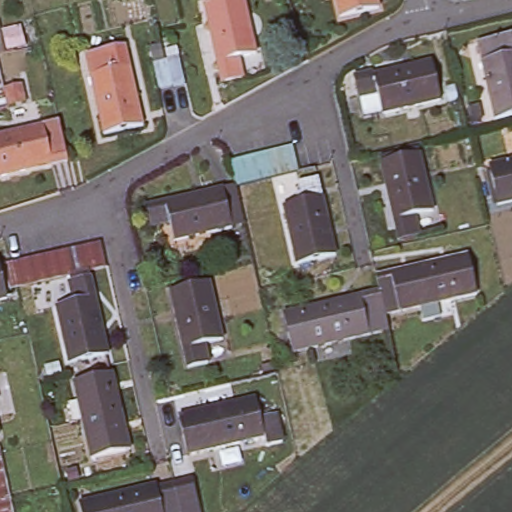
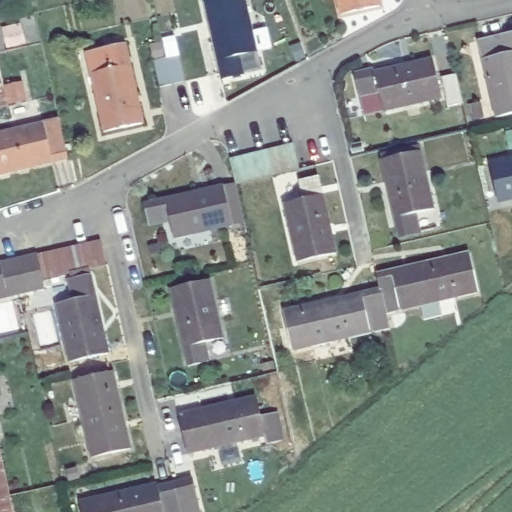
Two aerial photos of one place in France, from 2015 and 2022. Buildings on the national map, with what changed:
unchanged [(222,76),(206,0),(246,0),(257,48),(238,52),(242,71),(222,76)]
unchanged [(346,0),(371,0),(347,5),(346,0)]
unchanged [(484,56),(488,56),(483,37),(500,33),(512,31),(512,111),(497,114),(484,56)]
unchanged [(126,42),(142,119),(104,128),(92,71),(111,67),(107,47),(126,42)]
unchanged [(153,58),(166,55),(178,53),(184,78),(172,81),(159,84),(153,58)]
unchanged [(362,93),(357,73),(434,55),(442,93),(386,106),(367,111),(362,93)]
unchanged [(4,90),(6,102),(0,104),(0,75),(1,77),(4,90)]
unchanged [(42,121),(59,117),(67,156),(52,159),(0,171),(0,130),(42,120),(42,121)]
unchanged [(255,154),(267,151),(280,148),(292,146),(298,171),(286,174),(272,177),(261,179),(247,183),(235,185),(230,160),(242,157),(255,154)]
unchanged [(421,148),(435,206),(416,210),(420,228),(400,233),(382,157),(421,148)]
unchanged [(495,180),(491,160),(512,156),(512,177),(495,180)]
unchanged [(320,174),(336,252),(297,260),(285,203),(304,198),(300,178),(320,174)]
unchanged [(227,182),(237,220),(179,234),(174,214),(156,218),(152,201),(227,182)]
unchanged [(6,259),(15,257),(27,254),(40,251),(53,248),(66,245),(77,242),(91,239),(103,236),(109,261),(97,264),(83,267),(71,269),(59,272),(45,275),(32,278),(20,281),(11,283),(12,293),(0,296),(0,256),(3,255),(6,259)]
unchanged [(285,306),(362,290),(381,286),(377,271),(392,268),(470,250),(479,288),(422,301),(401,306),(386,309),(390,324),(371,328),(313,341),(292,346),(289,327),(285,306)]
unchanged [(61,299),(81,295),(76,276),(95,272),(112,348),(74,356),(61,299)]
unchanged [(210,276),(223,334),(204,338),(208,357),(189,362),(171,285),(210,276)]
unchanged [(97,454),(83,397),(79,377),(98,372),(117,368),(134,445),(97,454)]
unchanged [(189,430),(184,411),(262,394),(266,414),(281,409),(287,438),(271,442),(269,432),(212,445),(194,450),(189,430)]
unchanged [(6,486),(9,500),(11,510),(11,512),(0,512),(0,461),(2,472),(6,486)]
unchanged [(79,499),(155,481),(156,485),(174,481),(177,492),(181,512),(82,512),(79,499)]

